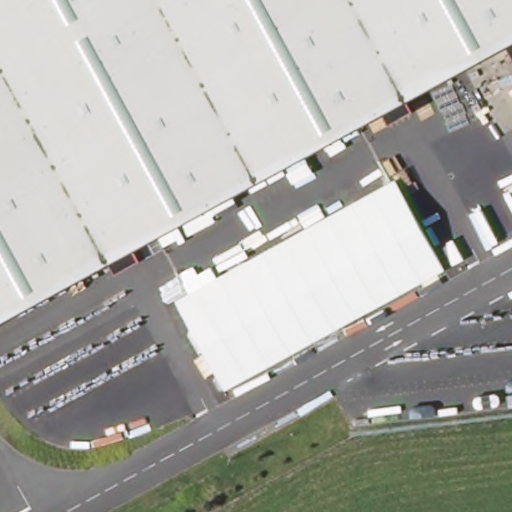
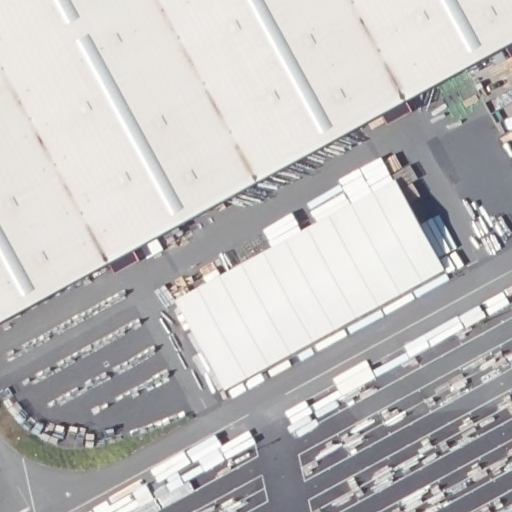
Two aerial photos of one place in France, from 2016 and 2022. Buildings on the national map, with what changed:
unchanged [(512,38),(0,316),(0,0),(512,0),(512,38)]
unchanged [(394,174),(444,263),(222,386),(175,296),(394,174)]

